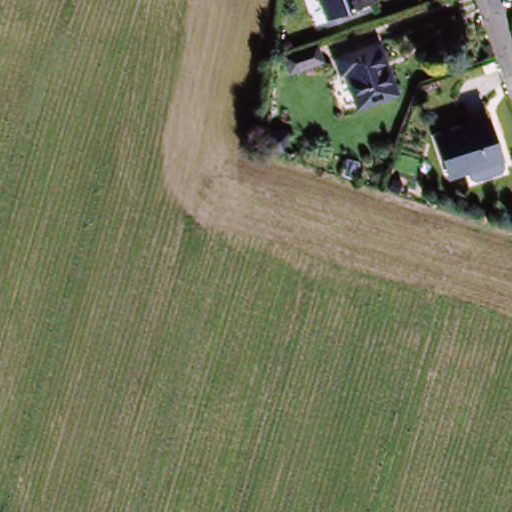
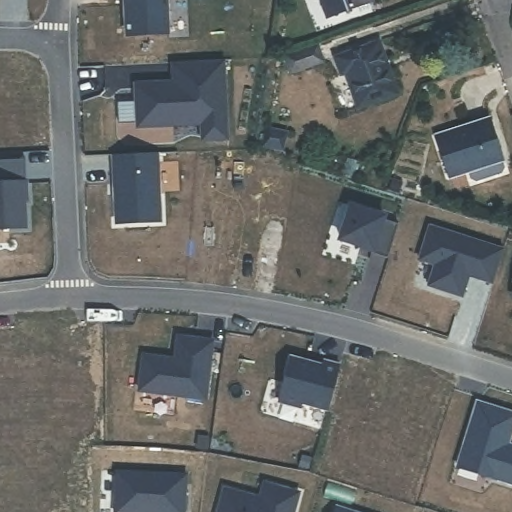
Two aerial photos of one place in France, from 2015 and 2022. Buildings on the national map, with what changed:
new [(169,33),(127,35),(125,0),(167,0),(169,33)]
unchanged [(362,9),(325,21),(317,0),(359,0),(362,9)]
unchanged [(347,74),(342,76),(336,58),(383,43),(401,97),(360,111),(347,74)]
new [(228,138),(207,139),(203,135),(202,123),(142,126),(138,122),(136,87),(140,83),(175,82),(174,62),(225,59),(228,138)]
unchanged [(496,118),(506,153),(472,167),(473,173),(455,180),(440,138),(496,118)]
new [(280,134),(276,152),(255,147),(259,130),(280,134)]
new [(114,155),(159,153),(161,222),(116,223),(114,155)]
new [(27,199),(25,199),(26,227),(0,229),(0,183),(26,182),(27,199)]
new [(360,246),(373,249),(340,239),(351,205),(385,216),(383,219),(399,224),(388,258),(371,253),(360,250),(360,246)]
new [(206,399),(140,390),(144,355),(168,359),(167,361),(175,362),(179,336),(213,341),(206,399)]
new [(329,410),(302,403),(301,407),(279,401),(292,352),(341,365),(329,410)]
new [(167,361),(168,359),(175,360),(175,362),(167,361)]
new [(458,466),(478,402),(512,413),(512,430),(506,449),(512,451),(512,483),(458,466)]
new [(335,512),(337,507),(353,512),(335,512)]

